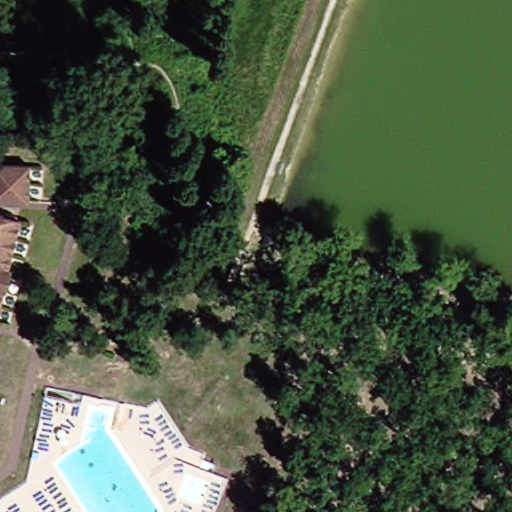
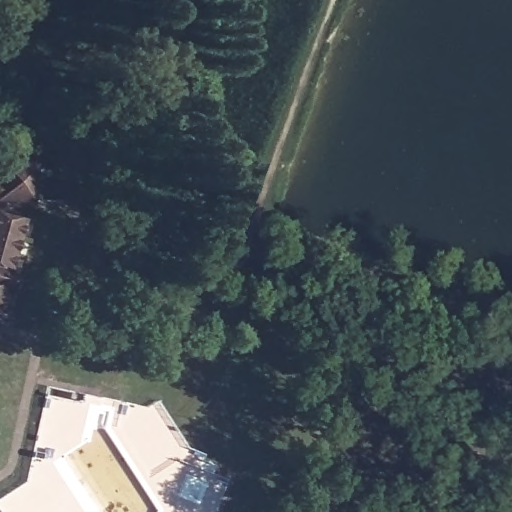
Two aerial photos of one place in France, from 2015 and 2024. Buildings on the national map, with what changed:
unchanged [(23,206),(0,204),(0,163),(26,166),(23,206)]
unchanged [(0,303),(0,218),(15,221),(0,303)]

